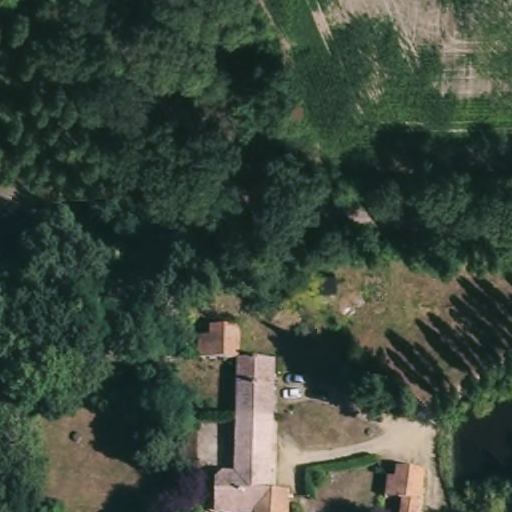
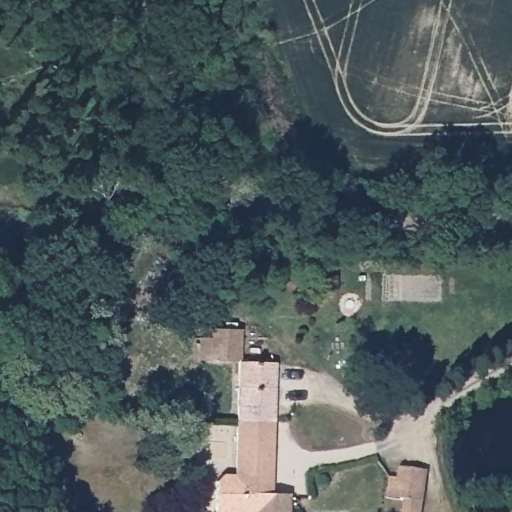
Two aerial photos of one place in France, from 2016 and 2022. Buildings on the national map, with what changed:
unchanged [(211,335),(212,327),(241,328),(240,362),(197,361),(199,335),(211,335)]
unchanged [(273,423),(271,493),(288,493),(288,512),(218,512),(214,509),(216,473),(237,473),(238,422),(240,362),(275,364),(273,423)]
unchanged [(399,512),(400,501),(382,500),(385,480),(392,480),(393,469),(421,471),(417,512),(399,512)]

